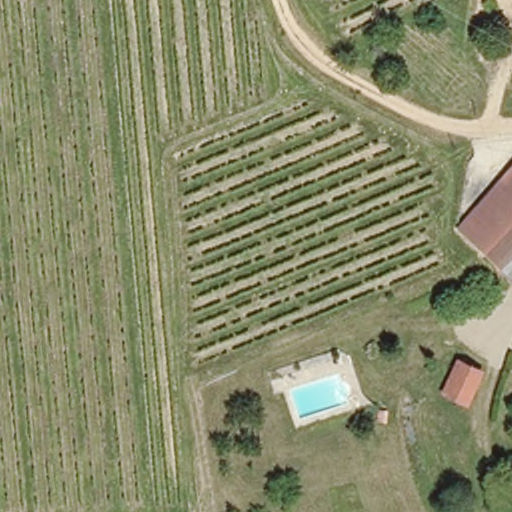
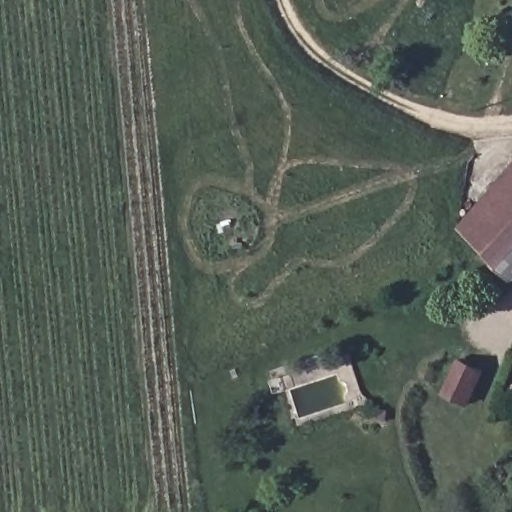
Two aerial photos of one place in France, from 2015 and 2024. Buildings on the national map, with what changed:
unchanged [(512,270),(485,250),(452,227),(482,195),(512,161),(512,270)]
unchanged [(444,398),(459,368),(479,378),(465,408),(444,398)]
unchanged [(434,391),(429,399),(423,395),(428,387),(434,391)]

